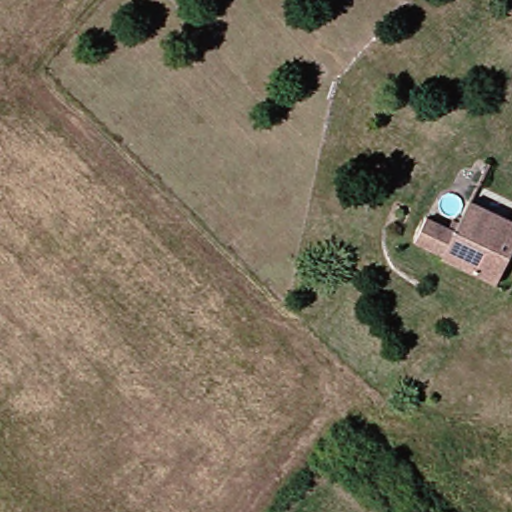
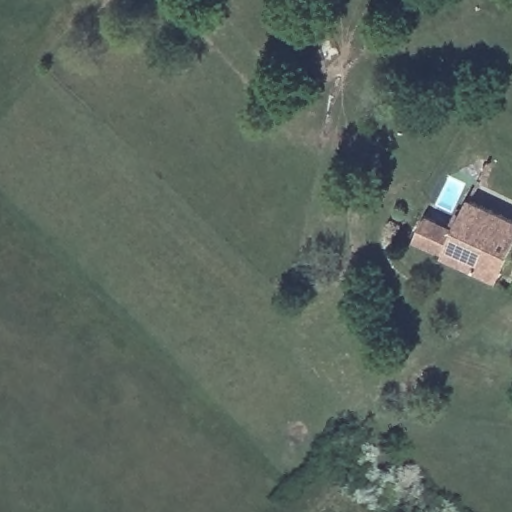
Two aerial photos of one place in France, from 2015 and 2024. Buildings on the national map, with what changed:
unchanged [(427,215),(457,230),(471,200),(512,218),(512,243),(494,281),(443,256),(445,254),(416,238),(427,215)]

